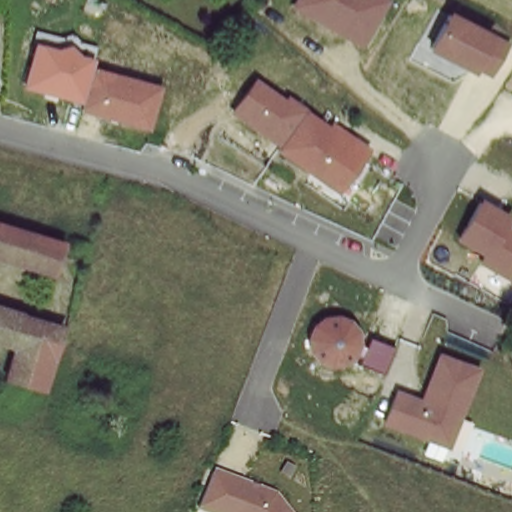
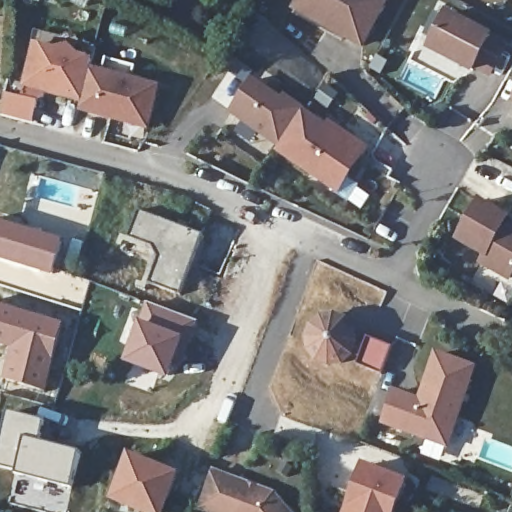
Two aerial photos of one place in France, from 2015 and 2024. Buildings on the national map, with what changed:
unchanged [(297,0),(388,0),(362,48),(292,10),(297,0)]
unchanged [(475,70),(471,74),(428,53),(447,13),(496,36),(509,44),(491,76),(475,70)]
unchanged [(148,131),(79,111),(81,102),(24,86),(34,44),(56,49),(69,45),(79,56),(94,59),(92,67),(161,86),(148,131)]
unchanged [(229,114),(254,79),(283,98),(285,96),(306,112),(280,146),(229,114)]
new [(39,101),(31,123),(0,113),(6,94),(9,81),(24,86),(48,93),(39,101)]
unchanged [(276,151),(306,112),(326,126),(329,120),(370,149),(338,193),(276,151)]
unchanged [(487,255),(458,239),(479,200),(510,221),(506,227),(512,230),(512,271),(510,275),(484,262),(487,255)]
new [(148,282),(158,258),(151,246),(129,237),(139,212),(203,236),(180,295),(148,282)]
unchanged [(46,273),(0,257),(0,222),(58,243),(46,273)]
unchanged [(69,328),(54,391),(2,377),(15,349),(0,345),(0,303),(69,328)]
new [(199,324),(182,368),(174,366),(169,380),(124,363),(139,322),(147,304),(199,324)]
unchanged [(382,373),(357,364),(359,358),(355,355),(350,362),(342,366),(329,368),(317,362),(308,351),(306,336),(311,324),(322,316),(336,314),(349,319),(359,332),(360,345),(365,347),(369,338),(393,347),(382,373)]
unchanged [(381,424),(392,388),(418,397),(436,351),(477,368),(447,448),(381,424)]
new [(45,423),(40,443),(79,453),(70,488),(17,474),(17,471),(0,467),(0,447),(9,413),(45,423)]
new [(127,451),(180,473),(164,512),(137,512),(108,500),(127,451)]
new [(408,480),(395,512),(343,512),(363,462),(408,480)]
unchanged [(213,470),(275,493),(289,512),(202,512),(213,470)]

